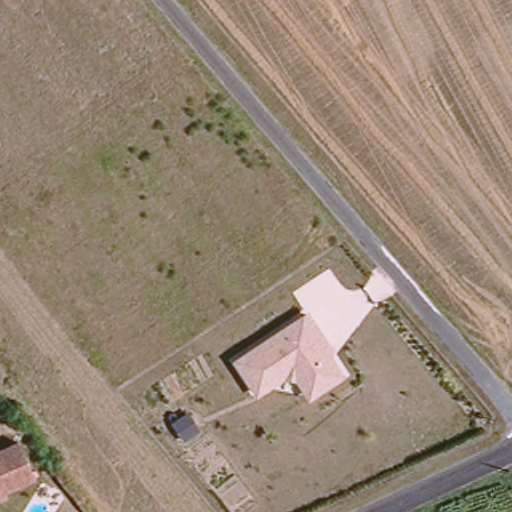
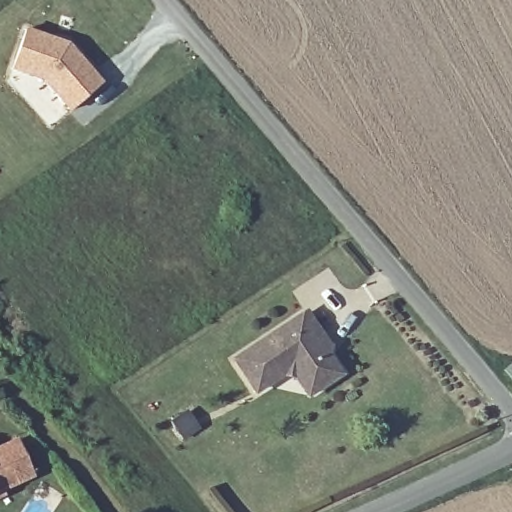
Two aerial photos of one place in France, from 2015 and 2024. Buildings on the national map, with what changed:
new [(25,27),(69,43),(103,84),(70,111),(42,81),(12,71),(25,27)]
unchanged [(307,307),(331,345),(330,353),(342,375),(305,398),(293,378),(283,376),(254,395),(231,358),(307,307)]
unchanged [(14,443),(28,482),(0,492),(0,447),(14,443)]

